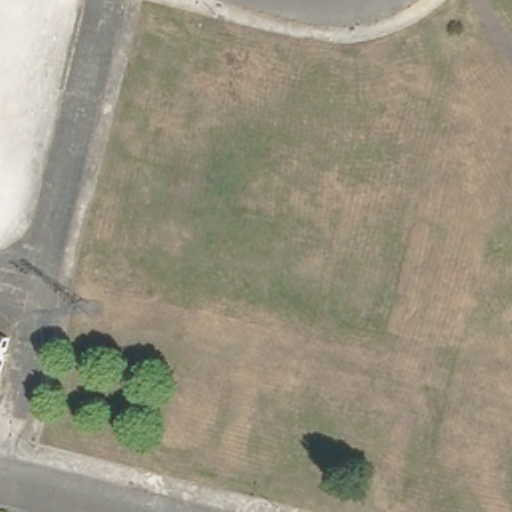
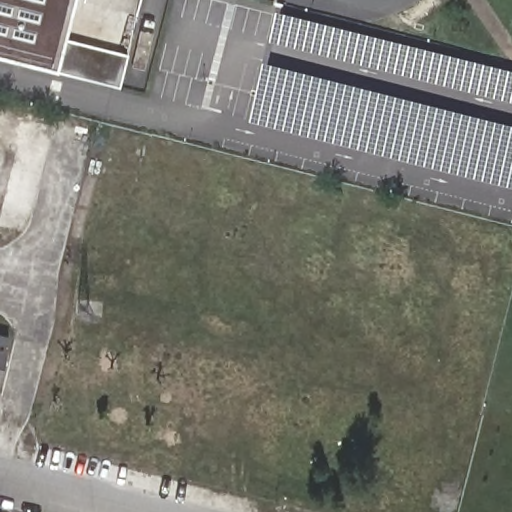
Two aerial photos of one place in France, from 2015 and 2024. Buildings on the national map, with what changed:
new [(63,39),(127,55),(118,89),(55,72),(0,59),(0,0),(73,0),(63,39)]
new [(512,74),(512,105),(275,45),(282,16),(512,74)]
new [(512,129),(512,189),(254,125),(267,68),(512,129)]
unchanged [(0,369),(0,336),(7,338),(0,369)]

